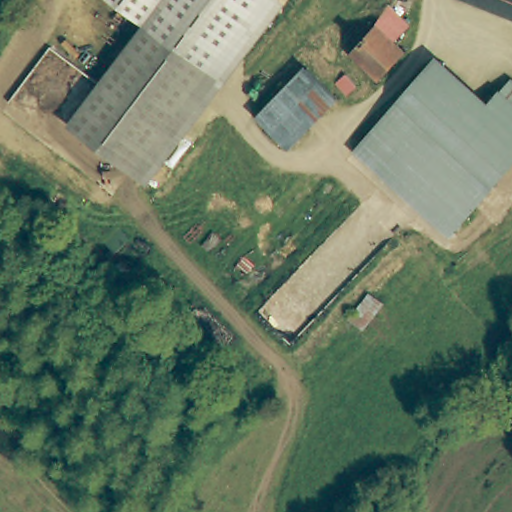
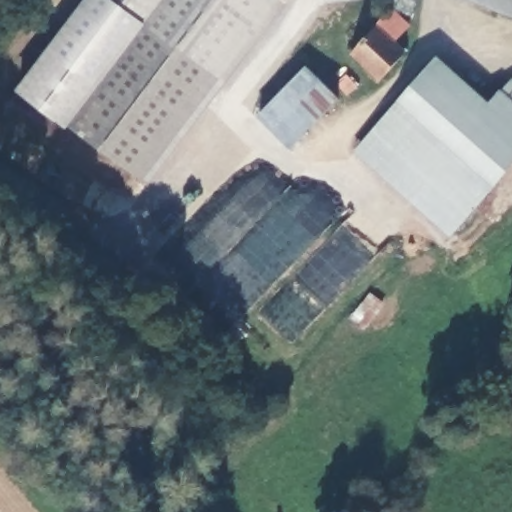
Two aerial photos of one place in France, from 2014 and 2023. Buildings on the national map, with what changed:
new [(86,0),(112,0),(154,33),(75,135),(17,90),(86,0)]
unchanged [(154,33),(112,0),(278,0),(279,1),(215,81),(154,33)]
unchanged [(464,0),(512,0),(512,17),(464,0)]
unchanged [(377,24),(392,4),(411,20),(393,38),(405,49),(379,79),(351,52),(376,22),(377,24)]
unchanged [(215,81),(137,183),(75,135),(154,33),(215,81)]
unchanged [(398,106),(436,60),(487,105),(448,150),(398,106)]
unchanged [(341,90),(297,145),(262,117),(307,62),(341,90)]
unchanged [(510,79),(512,81),(512,130),(475,174),(448,150),(487,105),(510,79)]
unchanged [(492,189),(452,235),(435,221),(359,155),(398,106),(448,150),(475,174),(492,189)]
unchanged [(492,189),(475,174),(512,130),(512,167),(492,189)]

